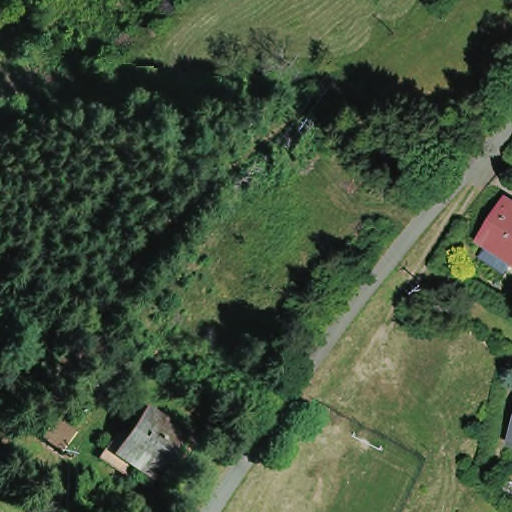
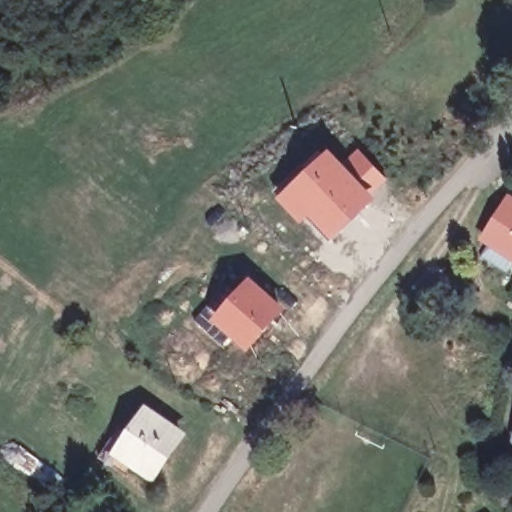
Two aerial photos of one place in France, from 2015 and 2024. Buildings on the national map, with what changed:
new [(343,161),(359,147),(388,179),(373,192),(378,198),(331,241),(309,217),(302,224),(277,197),(331,147),(343,161)]
unchanged [(490,237),(486,235),(508,194),(512,197),(512,267),(483,252),(490,237)]
new [(207,305),(216,313),(250,275),(286,308),(247,352),(229,337),(222,345),(194,319),(207,305)]
unchanged [(112,458),(132,428),(144,437),(154,422),(161,412),(194,435),(188,444),(166,476),(150,465),(142,477),(112,458)]
unchanged [(59,453),(39,440),(52,421),(71,434),(59,453)]

